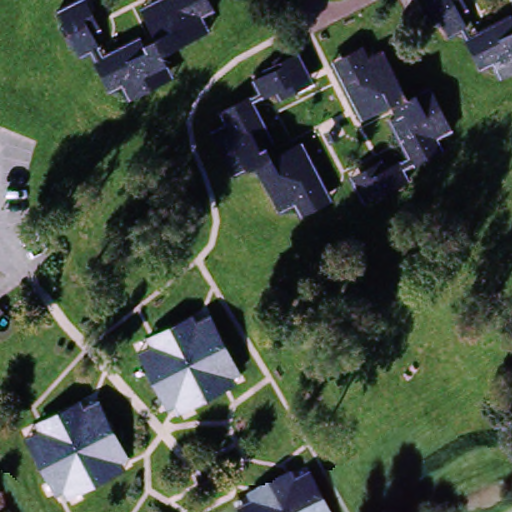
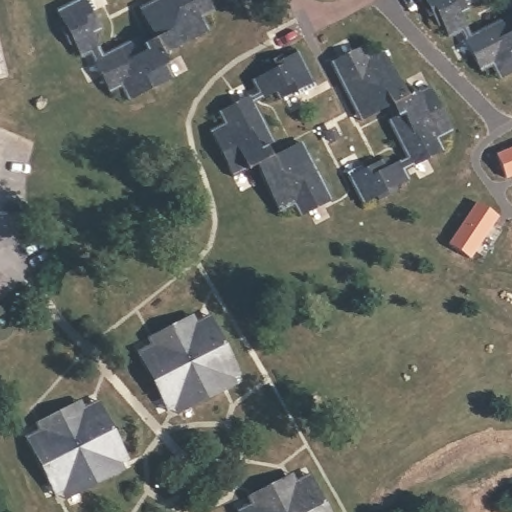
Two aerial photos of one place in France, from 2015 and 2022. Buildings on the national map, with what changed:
unchanged [(88,0),(102,29),(97,34),(103,47),(85,56),(77,43),(71,45),(60,23),(65,20),(58,4),(65,0),(88,0)]
unchanged [(207,0),(216,19),(205,24),(212,37),(167,60),(175,78),(126,103),(118,88),(109,92),(93,61),(142,37),(145,44),(155,39),(140,8),(156,0),(207,0)]
unchanged [(498,81),(491,69),(476,75),(459,34),(445,40),(426,0),(458,0),(473,33),(512,14),(512,74),(498,81)]
unchanged [(377,49),(382,59),(394,54),(417,99),(433,91),(456,138),(442,145),(448,155),(418,170),(395,124),(403,120),(397,108),(365,124),(337,69),(377,49)]
unchanged [(272,74),(271,71),(279,68),(277,64),(287,59),(290,63),(303,55),(318,84),(283,102),(278,91),(262,99),(254,83),(272,74)]
unchanged [(250,93),(275,141),(268,144),(275,157),(305,142),(332,195),(299,212),(295,203),(282,210),(257,163),(235,174),(211,125),(226,118),(220,108),(250,93)]
new [(506,180),(494,154),(512,146),(512,178),(506,180)]
unchanged [(385,163),(387,168),(404,160),(415,181),(399,189),(402,195),(380,206),(377,199),(362,206),(350,180),(385,163)]
new [(500,218),(471,260),(447,245),(475,203),(500,218)]
unchanged [(169,407),(162,411),(148,383),(133,353),(152,344),(147,335),(167,325),(193,313),(197,323),(211,315),(225,344),(239,372),(225,379),(228,387),(204,399),(172,414),(169,407)]
unchanged [(63,489),(50,495),(37,467),(22,438),(41,429),(37,421),(57,412),(83,399),(87,407),(99,402),(113,431),(125,457),(114,462),(119,473),(92,486),(67,497),(63,489)]
unchanged [(252,503),(247,494),(267,484),(293,472),(297,482),(310,476),(322,503),(327,512),(232,512),(252,503)]

